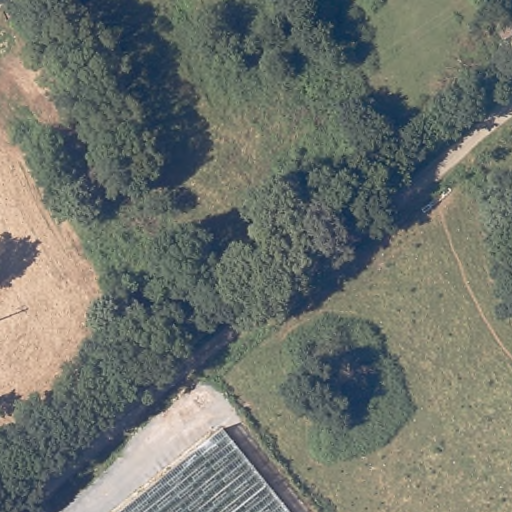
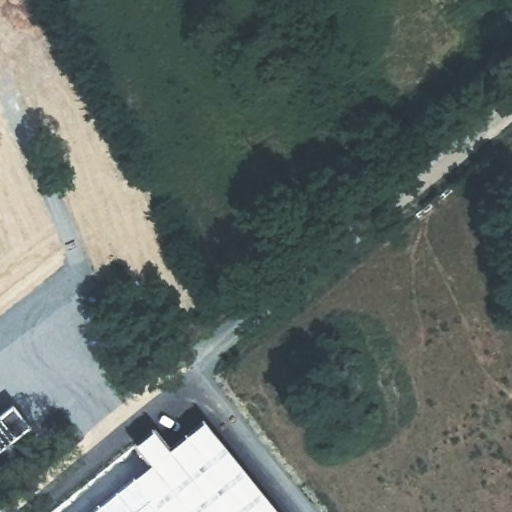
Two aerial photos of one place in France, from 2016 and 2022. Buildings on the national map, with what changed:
new [(13,403),(31,426),(0,450),(0,414),(13,403)]
unchanged [(222,428),(290,512),(119,512),(222,428)]

